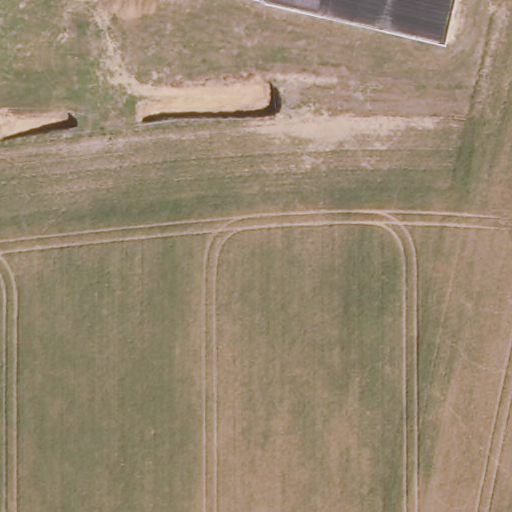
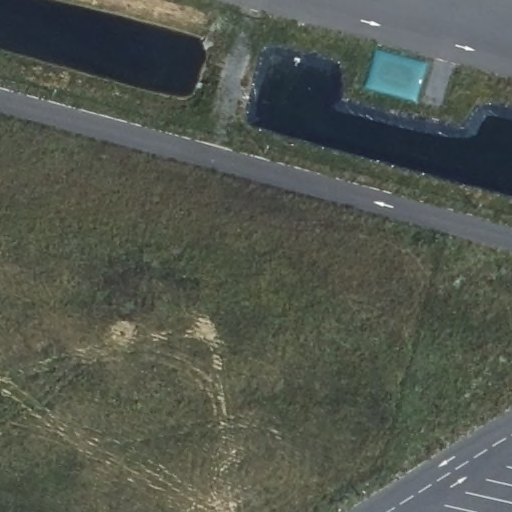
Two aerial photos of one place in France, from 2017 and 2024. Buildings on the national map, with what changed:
demolished [(272,0),(457,0),(448,42),(272,0)]

